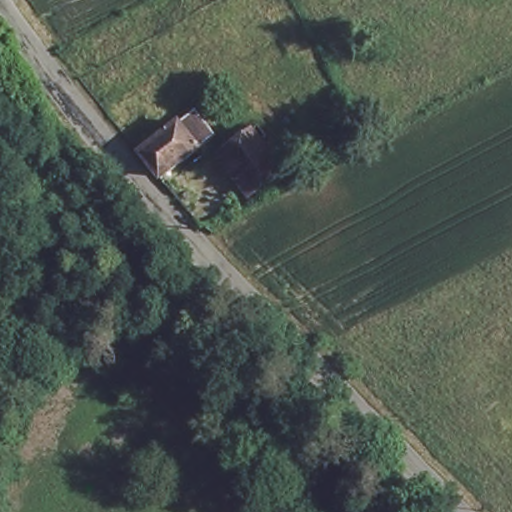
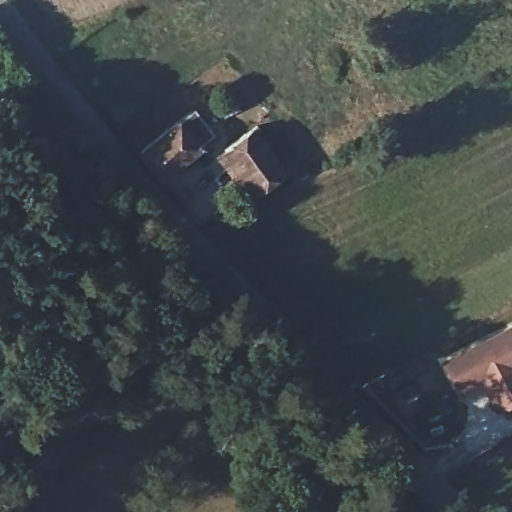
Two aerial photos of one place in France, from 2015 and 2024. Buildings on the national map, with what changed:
unchanged [(132,151),(187,105),(208,130),(152,175),(132,151)]
unchanged [(215,151),(223,145),(248,125),(280,167),(255,185),(247,192),(215,151)]
new [(512,328),(512,404),(496,412),(479,382),(457,394),(442,366),(512,328)]

